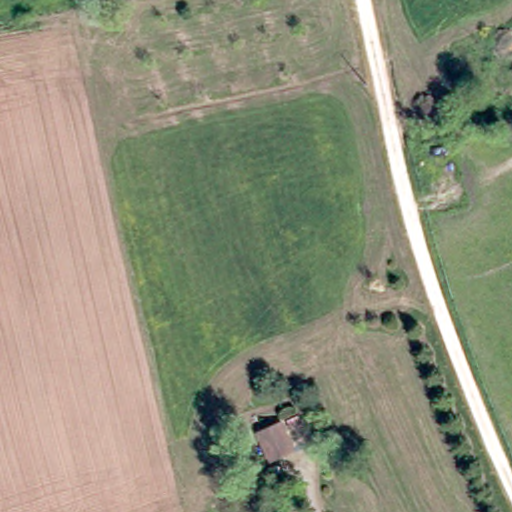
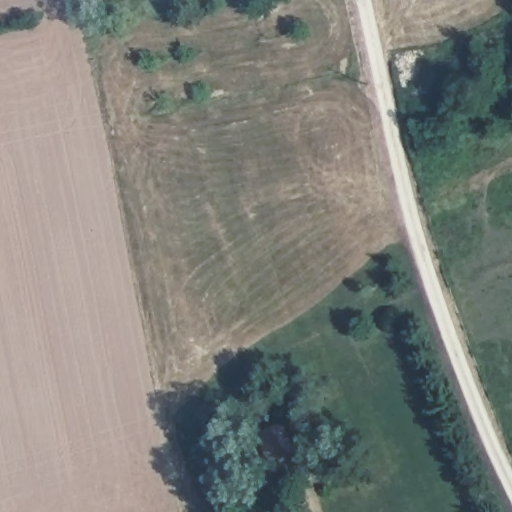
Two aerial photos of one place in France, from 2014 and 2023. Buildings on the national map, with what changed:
unchanged [(268,460),(255,429),(290,412),(300,443),(268,460)]

